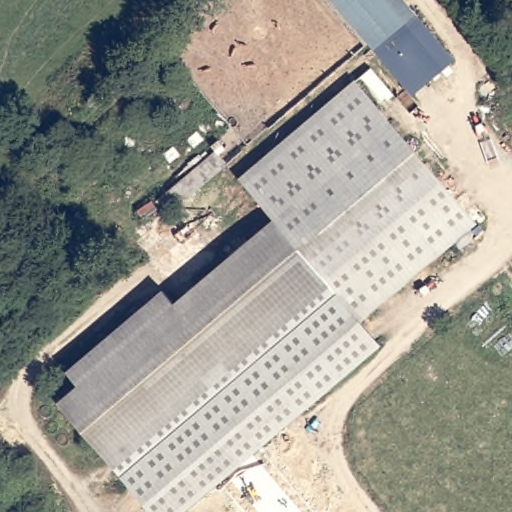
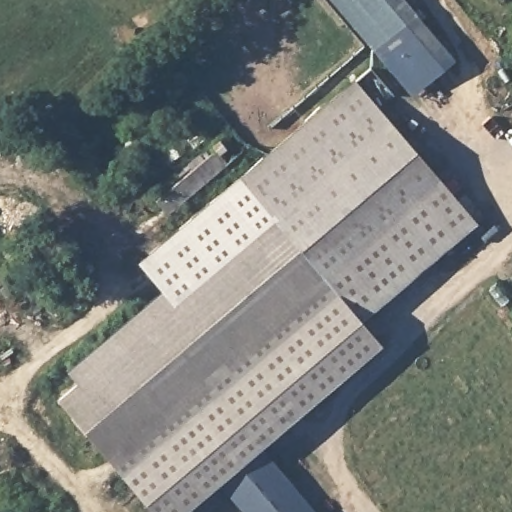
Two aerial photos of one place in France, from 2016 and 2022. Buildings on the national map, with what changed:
unchanged [(376,51),(330,0),(407,0),(419,13),(376,51)]
unchanged [(419,13),(454,57),(412,94),(376,51),(419,13)]
unchanged [(181,512),(150,512),(109,463),(58,397),(77,381),(66,367),(97,342),(122,322),(163,288),(170,297),(174,302),(200,281),(275,221),(242,180),(362,82),(429,164),(479,226),(359,325),(379,348),(181,512)]
unchanged [(155,192),(214,148),(229,169),(170,213),(155,192)]
new [(275,221),(200,281),(174,302),(170,297),(163,288),(140,262),(242,180),(275,221)]
unchanged [(245,512),(219,480),(261,445),(316,512),(245,512)]

